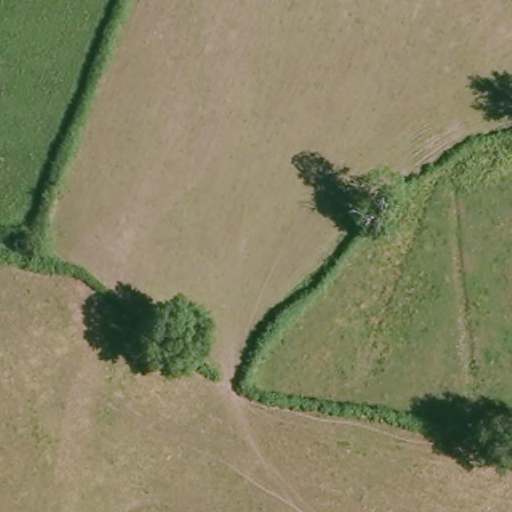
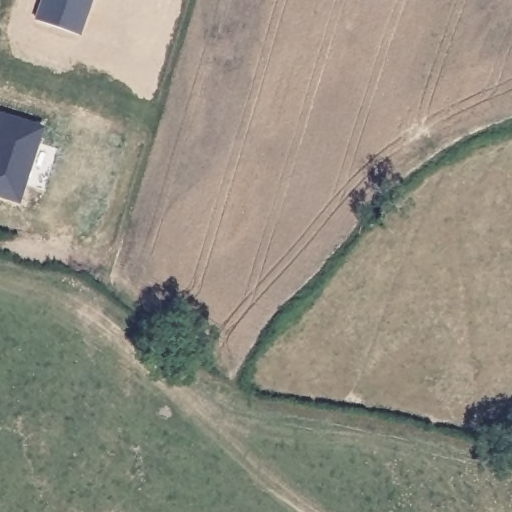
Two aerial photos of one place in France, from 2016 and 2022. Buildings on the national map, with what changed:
new [(82,35),(33,16),(39,0),(94,0),(82,35)]
new [(0,199),(0,113),(47,129),(19,205),(0,199)]

